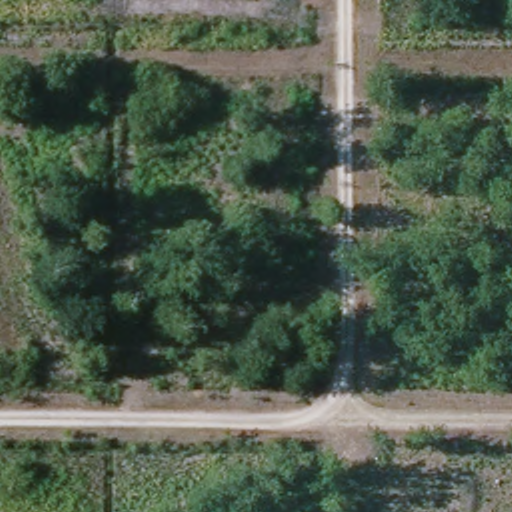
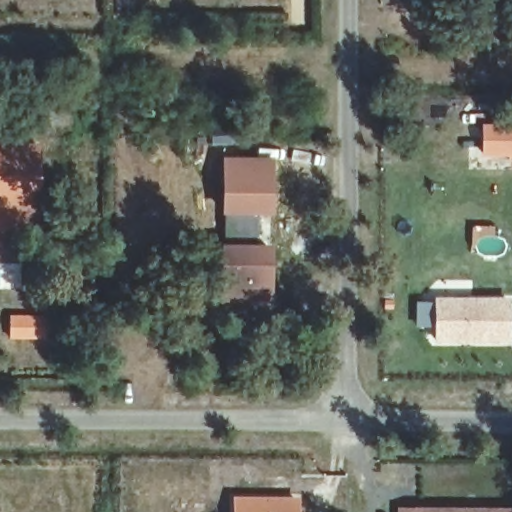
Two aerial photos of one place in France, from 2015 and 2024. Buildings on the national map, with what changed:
new [(512,122),(512,156),(483,156),(481,122),(512,122)]
new [(39,228),(0,229),(0,144),(40,144),(39,228)]
new [(272,215),(260,214),(261,244),(271,244),(271,304),(221,302),(220,245),(226,245),(225,215),(220,214),(222,158),(273,159),(272,215)]
new [(433,344),(434,297),(511,298),(511,345),(433,344)]
new [(232,512),(232,497),(300,497),(299,512),(232,512)]
new [(398,512),(398,509),(512,508),(512,512),(398,512)]

